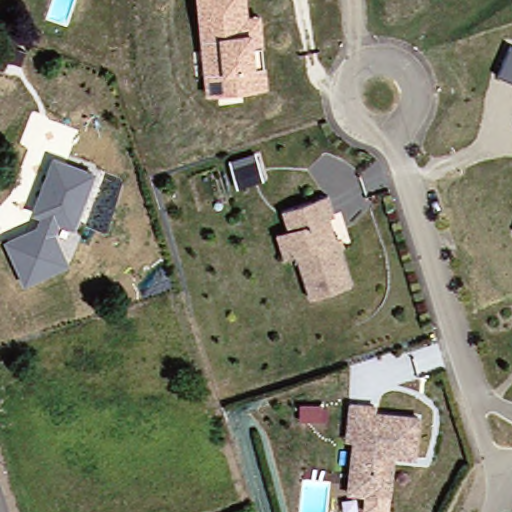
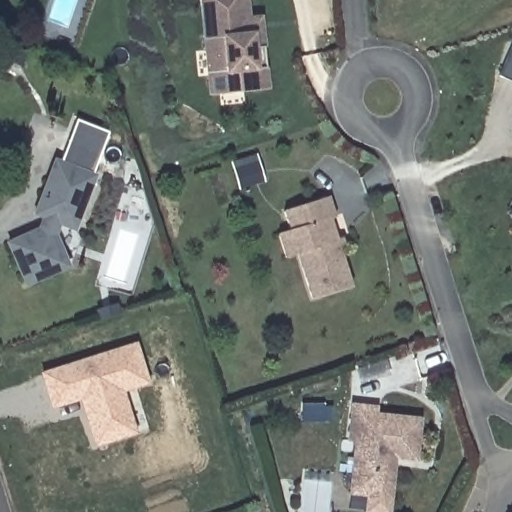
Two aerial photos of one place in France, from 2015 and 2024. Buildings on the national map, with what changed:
unchanged [(222,103),(220,91),(210,92),(208,74),(198,75),(195,51),(205,49),(199,0),(245,0),(246,16),(260,15),(268,85),(244,88),(245,100),(222,103)]
unchanged [(502,77),(512,54),(512,82),(502,77)]
unchanged [(235,190),(227,163),(258,155),(265,181),(235,190)]
unchanged [(9,240),(40,226),(45,214),(36,211),(56,157),(96,173),(75,226),(60,220),(55,231),(70,263),(28,281),(9,240)]
unchanged [(330,198),(337,218),(332,219),(355,287),(314,300),(300,255),(287,259),(286,253),(280,235),(288,233),(292,232),(289,223),(285,212),(290,211),(330,198)]
new [(137,341),(149,386),(125,391),(137,433),(94,448),(80,401),(54,409),(40,371),(137,341)]
unchanged [(300,399),(320,400),(318,419),(299,418),(300,399)]
unchanged [(390,464),(387,496),(347,492),(351,452),(353,439),(345,438),(350,403),(373,406),(372,414),(417,419),(412,459),(391,456),(391,458),(390,464)]

